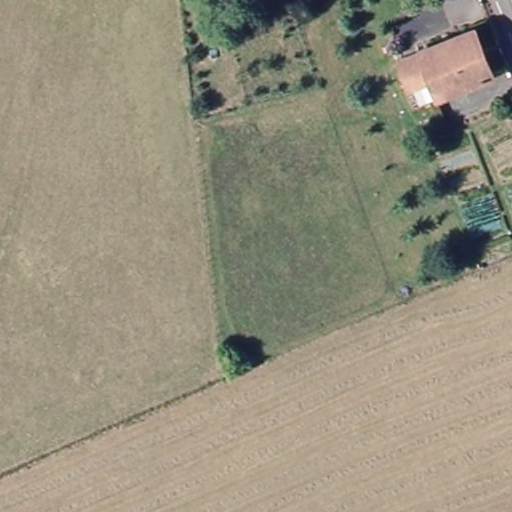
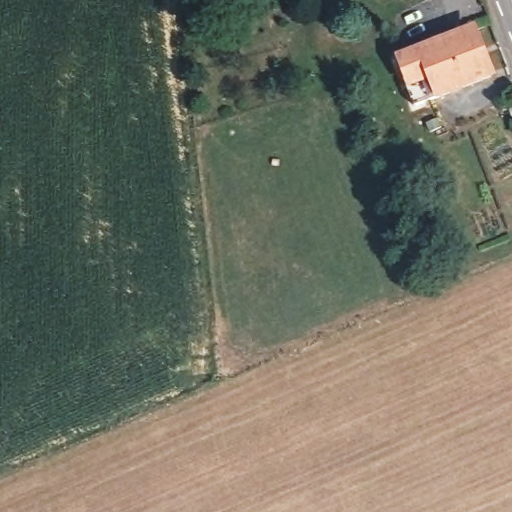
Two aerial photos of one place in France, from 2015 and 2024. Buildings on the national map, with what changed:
unchanged [(426,42),(473,21),(491,65),(443,86),(441,81),(426,42)]
unchanged [(413,93),(396,56),(426,42),(441,81),(413,93)]

